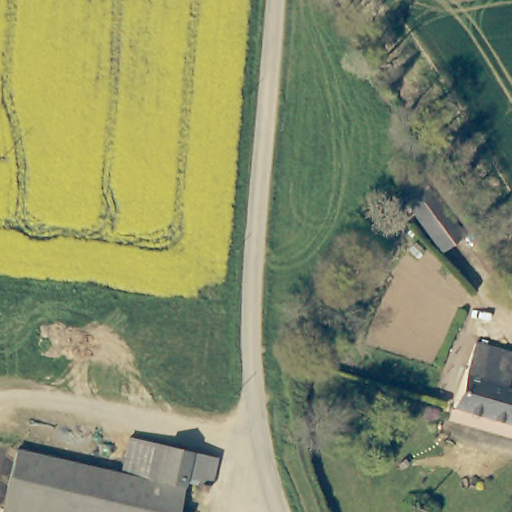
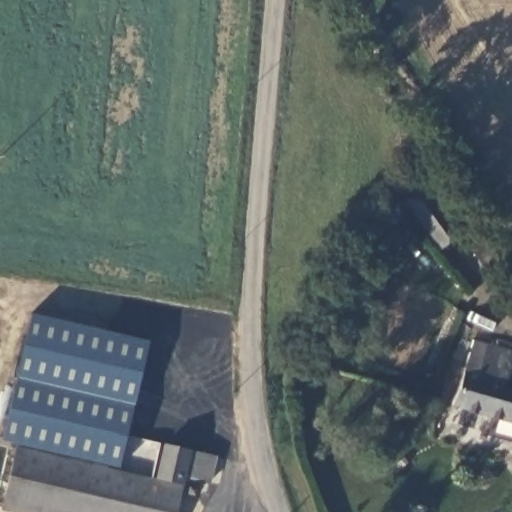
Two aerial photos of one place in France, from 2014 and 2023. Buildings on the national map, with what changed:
demolished [(429,202),(411,220),(393,201),(411,183),(429,202)]
new [(428,184),(465,234),(438,252),(405,201),(428,184)]
new [(127,438),(119,473),(15,448),(15,444),(0,441),(30,313),(150,341),(127,438)]
unchanged [(470,338),(510,351),(501,386),(495,384),(497,376),(463,365),(470,338)]
unchanged [(497,376),(495,384),(501,386),(512,390),(512,420),(451,401),(459,379),(463,365),(497,376)]
unchanged [(208,484),(182,478),(180,488),(119,473),(127,438),(214,459),(208,484)]
unchanged [(31,512),(0,504),(15,448),(119,473),(180,488),(174,512),(31,512)]

